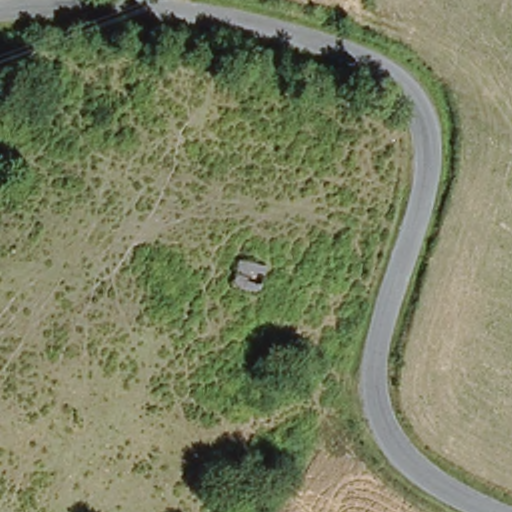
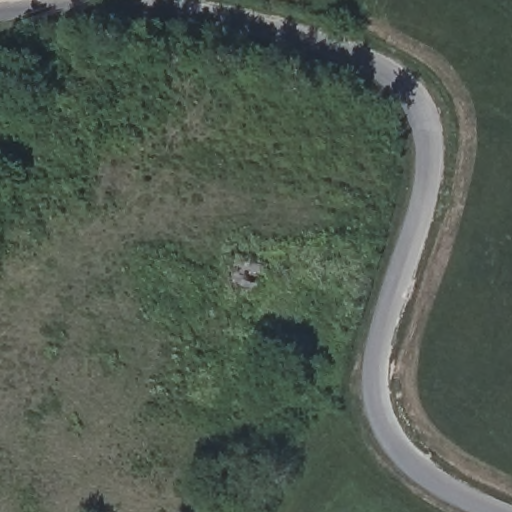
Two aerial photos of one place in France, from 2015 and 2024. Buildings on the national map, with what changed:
unchanged [(257,295),(228,287),(236,260),(263,264),(257,295)]

